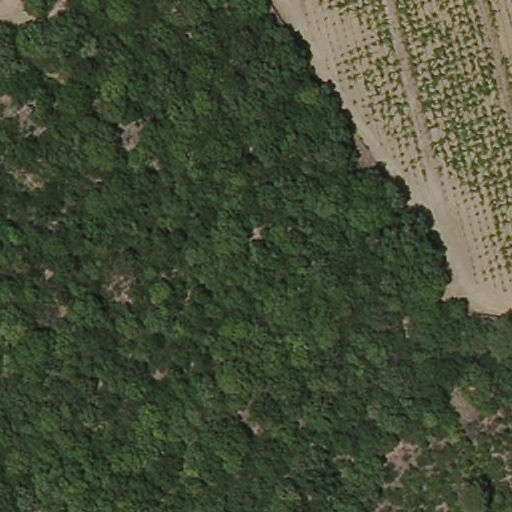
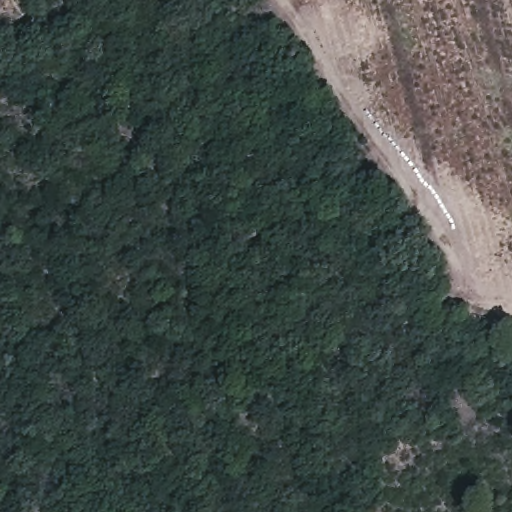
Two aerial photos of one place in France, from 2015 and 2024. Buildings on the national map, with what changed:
[]

